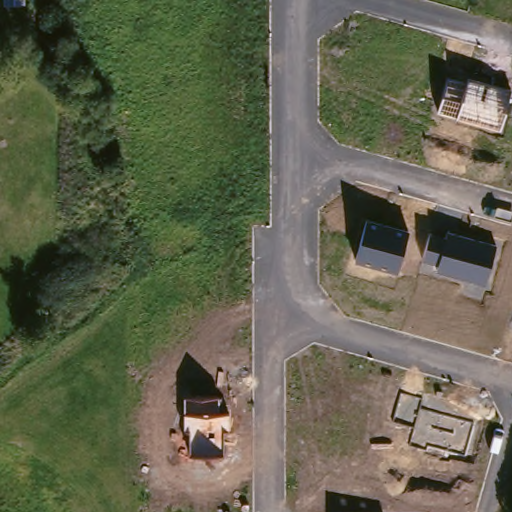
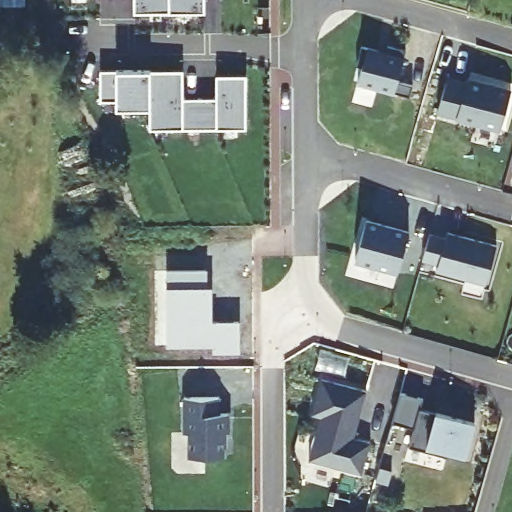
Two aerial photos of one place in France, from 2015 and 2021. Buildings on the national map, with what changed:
new [(204,14),(134,13),(134,0),(204,0),(204,14)]
new [(377,51),(389,46),(406,51),(399,82),(414,86),(411,98),(358,85),(363,69),(356,68),(363,47),(377,51)]
new [(118,71),(150,71),(183,71),(183,100),(216,100),(216,76),(245,77),(245,130),(150,129),(149,109),(116,108),(117,102),(100,102),(100,75),(118,71)]
unchanged [(500,130),(454,117),(438,113),(448,77),(468,82),(468,79),(512,91),(500,130)]
unchanged [(398,274),(355,263),(368,219),(410,231),(398,274)]
unchanged [(485,286),(436,271),(438,266),(423,262),(430,235),(445,239),(447,234),(495,247),(485,286)]
new [(239,355),(215,355),(215,348),(168,350),(167,327),(173,326),(172,293),(166,293),(166,275),(204,274),(205,307),(210,307),(211,326),(238,325),(239,355)]
new [(321,416),(312,414),(322,379),(368,392),(354,438),(371,443),(362,474),(309,459),(321,416)]
new [(400,395),(423,401),(419,412),(435,416),(436,413),(475,425),(465,460),(446,453),(444,458),(409,447),(414,429),(393,423),(400,395)]
unchanged [(220,412),(230,412),(230,430),(221,430),(221,455),(188,456),(188,431),(184,431),(183,398),(220,397),(220,412)]

